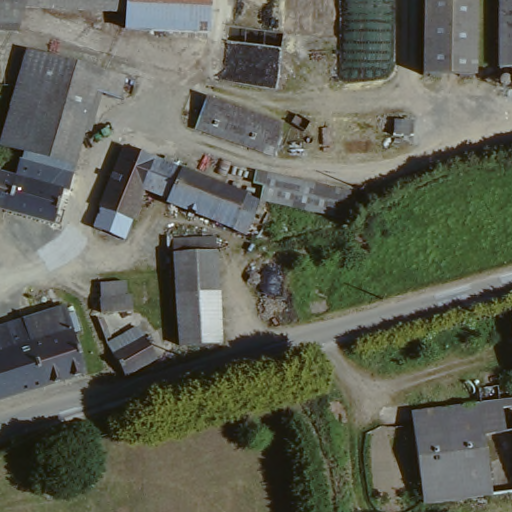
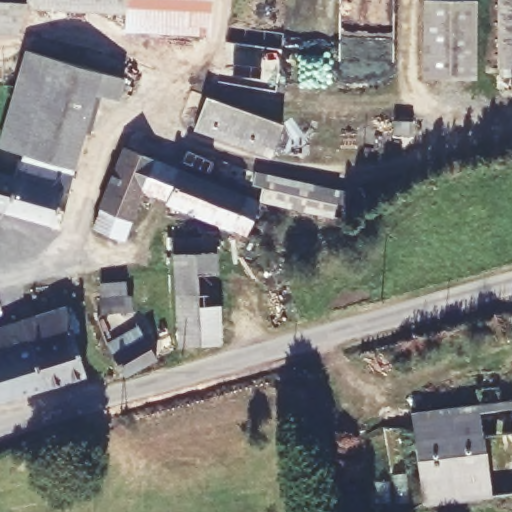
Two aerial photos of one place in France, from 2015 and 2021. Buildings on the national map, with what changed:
unchanged [(205,37),(123,34),(123,15),(0,11),(0,0),(206,0),(205,37)]
unchanged [(497,1),(497,0),(512,0),(512,75),(497,75),(497,1)]
unchanged [(473,79),(423,81),(421,3),(471,2),(473,79)]
unchanged [(119,104),(106,100),(96,136),(77,134),(89,97),(19,76),(25,54),(126,82),(119,104)]
unchanged [(0,148),(0,142),(19,76),(89,97),(77,134),(67,167),(22,155),(0,148)]
unchanged [(275,127),(264,160),(188,133),(202,102),(275,127)]
unchanged [(131,222),(128,221),(125,232),(98,220),(98,207),(107,180),(117,150),(150,162),(140,195),(131,222)]
unchanged [(67,167),(61,194),(15,182),(22,155),(67,167)]
unchanged [(152,159),(210,184),(258,204),(245,240),(168,211),(168,206),(155,201),(140,195),(150,162),(152,159)]
unchanged [(0,213),(0,178),(15,182),(6,215),(0,213)]
unchanged [(61,194),(60,200),(68,202),(61,230),(6,215),(15,182),(61,194)]
unchanged [(175,252),(174,241),(215,240),(216,249),(175,252)]
unchanged [(219,347),(178,350),(173,260),(216,257),(219,347)]
unchanged [(124,306),(131,306),(132,316),(115,318),(115,315),(98,317),(97,308),(102,308),(100,290),(122,286),(124,306)]
unchanged [(79,385),(39,395),(19,330),(63,317),(79,385)]
unchanged [(122,376),(106,345),(136,327),(157,361),(122,376)]
unchanged [(39,395),(0,407),(0,335),(19,330),(39,395)]
unchanged [(409,423),(408,415),(461,406),(459,392),(512,385),(512,494),(419,505),(409,423)]

